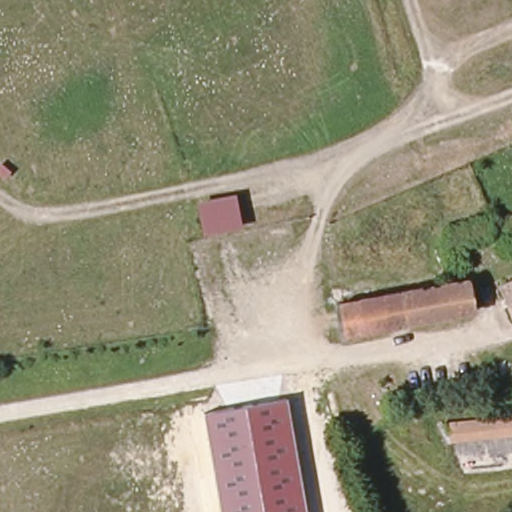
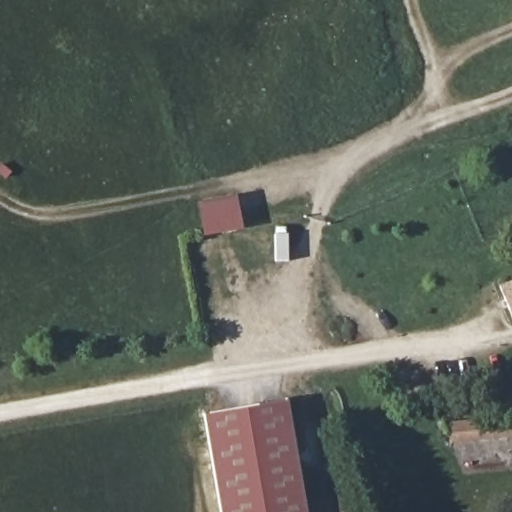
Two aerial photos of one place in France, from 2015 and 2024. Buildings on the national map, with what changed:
unchanged [(240,225),(202,233),(195,196),(232,192),(240,225)]
demolished [(473,315),(340,336),(337,305),(470,285),(473,315)]
unchanged [(512,285),(512,305),(506,288),(512,285)]
unchanged [(204,413),(286,399),(306,512),(221,512),(204,413)]
unchanged [(453,428),(496,424),(512,423),(512,438),(502,439),(455,443),(453,428)]

